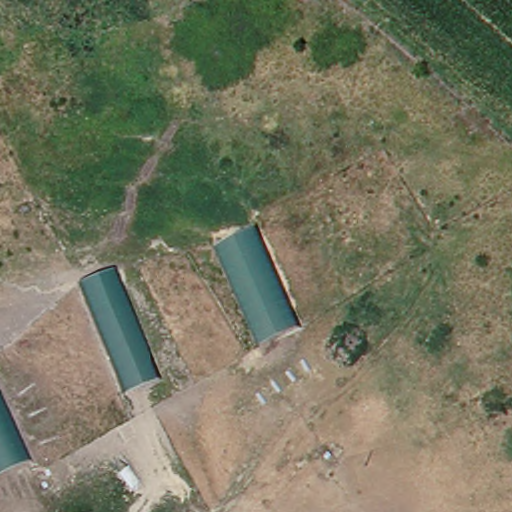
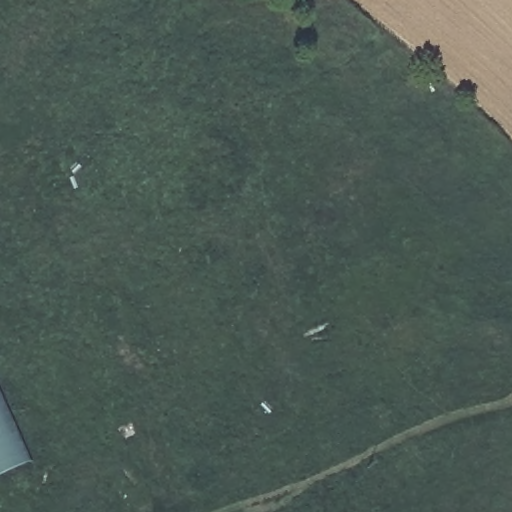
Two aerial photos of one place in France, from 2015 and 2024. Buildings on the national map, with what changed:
demolished [(303,326),(264,343),(214,233),(257,215),(303,326)]
demolished [(117,270),(161,380),(125,394),(79,284),(117,270)]
unchanged [(0,473),(0,394),(29,461),(0,473)]

